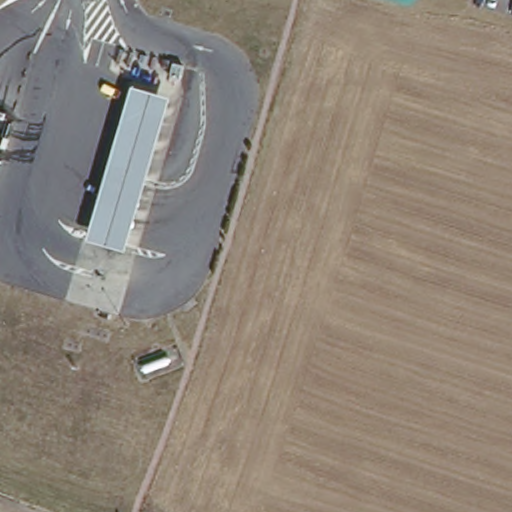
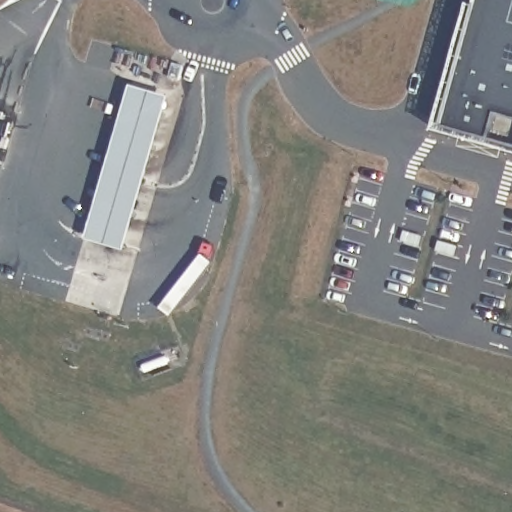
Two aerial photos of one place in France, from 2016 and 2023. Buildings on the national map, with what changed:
new [(446,125),(481,3),(469,0),(512,0),(512,143),(446,125)]
unchanged [(131,254),(86,241),(128,86),(174,97),(131,254)]

